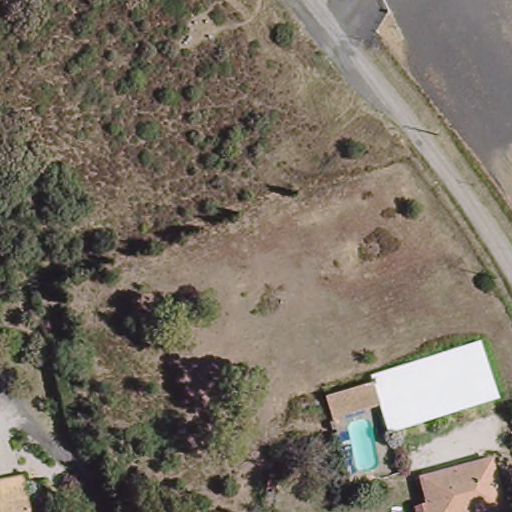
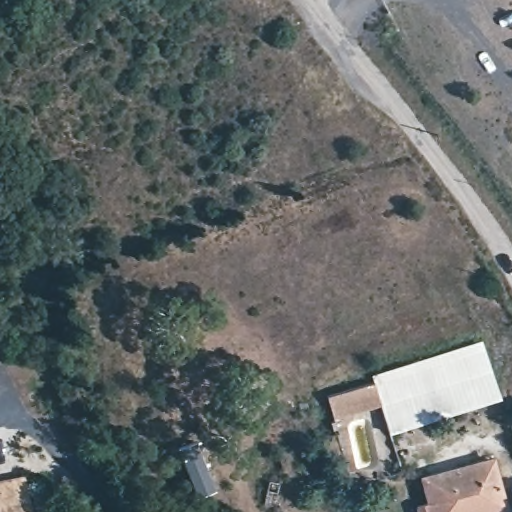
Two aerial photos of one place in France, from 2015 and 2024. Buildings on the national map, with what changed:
unchanged [(490,391),(385,425),(376,399),(369,378),(369,374),(475,342),(490,391)]
unchanged [(376,399),(329,413),(323,391),(369,378),(376,399)]
unchanged [(435,505),(428,477),(495,459),(508,508),(508,510),(509,512),(425,512),(424,508),(435,505)]
unchanged [(23,476),(31,511),(28,512),(0,512),(0,481),(23,476)]

